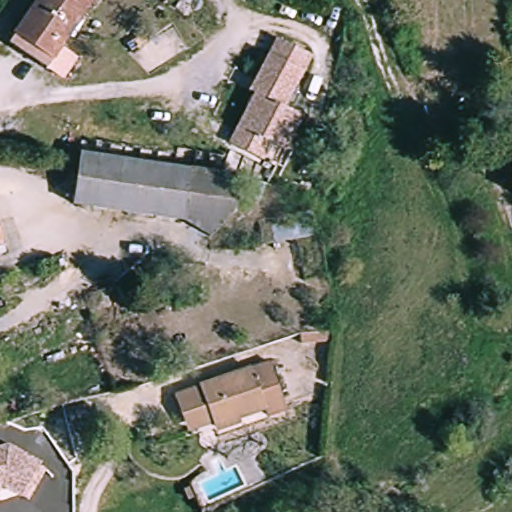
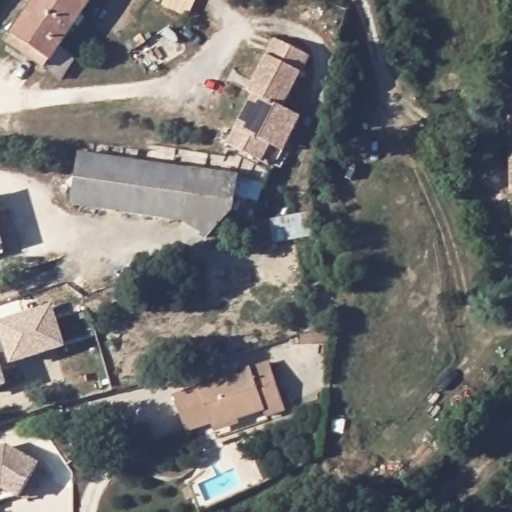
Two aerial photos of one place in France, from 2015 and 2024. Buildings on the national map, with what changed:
unchanged [(37,0),(84,0),(67,29),(82,38),(67,64),(51,55),(46,66),(9,47),(15,36),(37,0)]
unchanged [(285,151),(273,144),(264,162),(235,148),(242,120),(260,86),(254,75),(273,39),(309,56),(286,106),(289,112),(301,118),(285,151)]
unchanged [(79,203),(86,153),(232,175),(242,178),(237,197),(235,208),(213,235),(192,217),(79,203)]
unchanged [(321,237),(262,247),(258,217),(315,208),(321,237)]
unchanged [(0,244),(0,228),(5,242),(0,244)]
new [(2,330),(0,325),(0,316),(48,301),(59,339),(9,354),(0,357),(0,331),(2,330)]
unchanged [(262,401),(212,419),(206,400),(183,409),(177,392),(270,357),(287,401),(264,410),(262,401)]
new [(1,376),(0,377),(0,375),(1,376)]
unchanged [(0,498),(0,443),(4,442),(37,459),(20,491),(0,498)]

